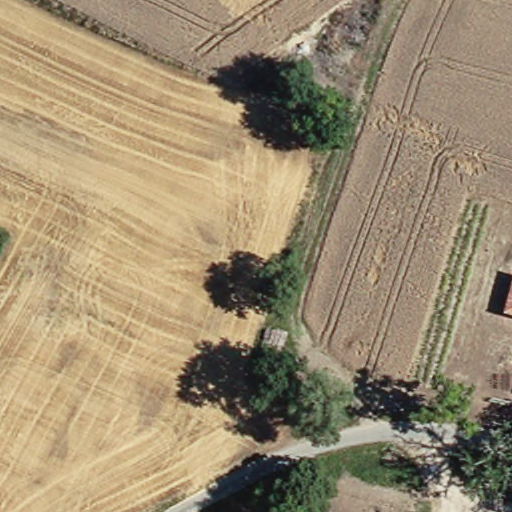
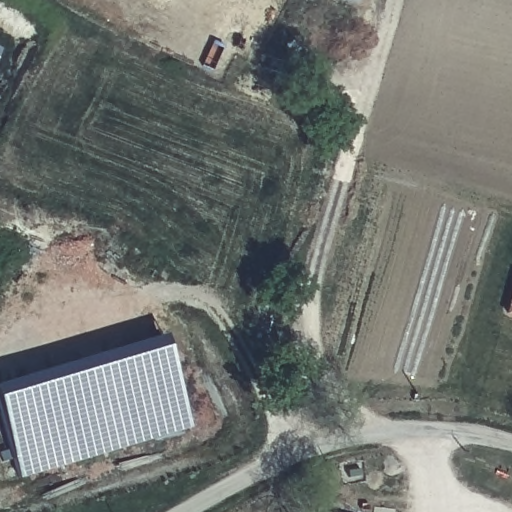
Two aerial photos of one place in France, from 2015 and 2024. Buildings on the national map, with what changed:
new [(1,50),(0,52),(0,49),(1,50)]
unchanged [(512,280),(512,318),(503,316),(512,280)]
new [(164,334),(191,426),(20,477),(0,412),(0,383),(164,334)]
unchanged [(328,512),(326,512),(326,511),(328,512)]

